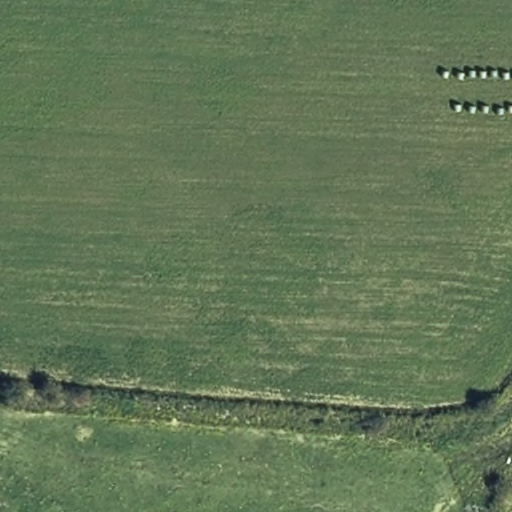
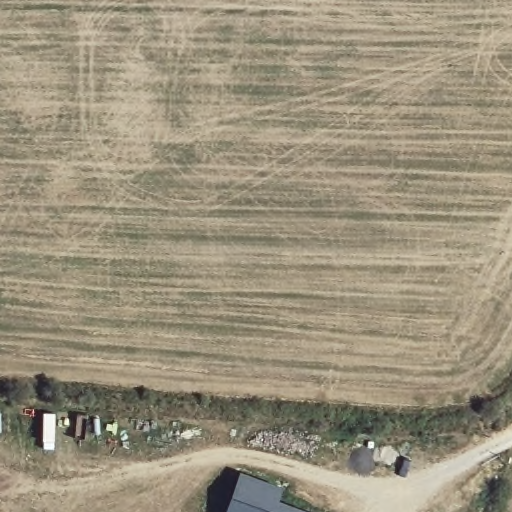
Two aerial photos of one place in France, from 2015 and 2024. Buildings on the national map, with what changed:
new [(309,512),(226,512),(240,472),(283,488),(278,500),(309,512)]

